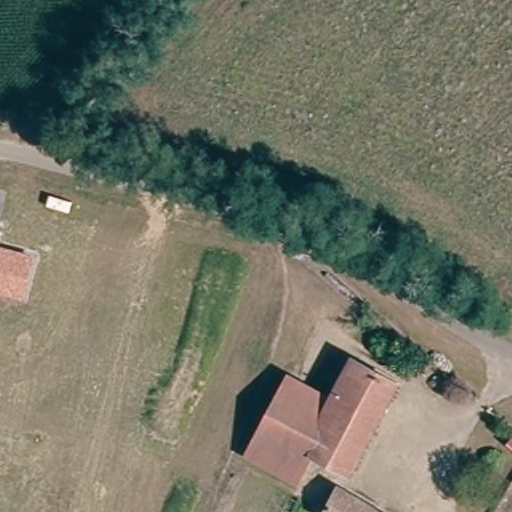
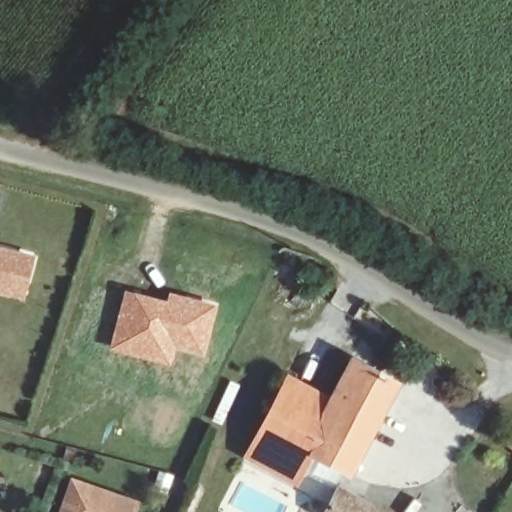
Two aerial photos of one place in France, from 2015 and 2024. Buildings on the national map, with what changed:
unchanged [(26,301),(0,293),(0,246),(36,255),(26,301)]
new [(124,287),(165,298),(168,290),(219,302),(204,357),(176,349),(171,366),(107,350),(124,287)]
unchanged [(350,472),(313,452),(297,483),(246,456),(289,377),(331,399),(352,360),(396,383),(350,472)]
unchanged [(506,447),(512,440),(512,452),(506,447)]
new [(72,479),(140,502),(137,512),(60,512),(72,479)]
unchanged [(343,488),(384,512),(330,512),(343,488)]

